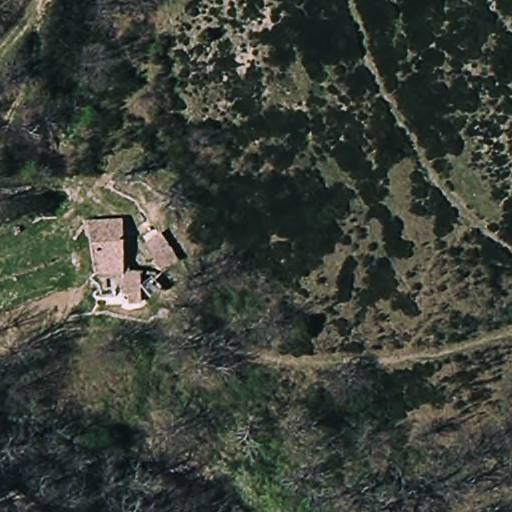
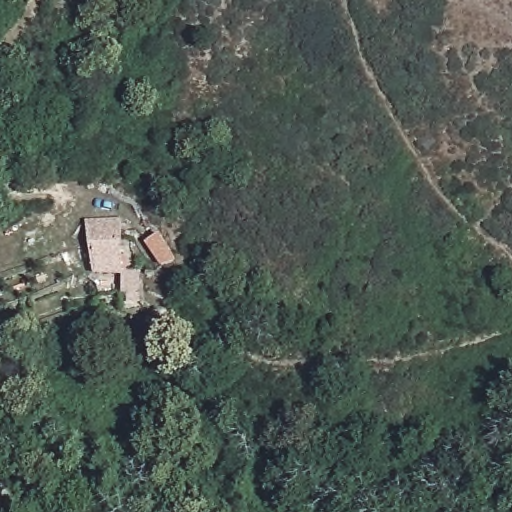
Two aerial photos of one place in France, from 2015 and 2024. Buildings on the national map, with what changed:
unchanged [(91,220),(124,217),(125,272),(97,274),(91,220)]
unchanged [(165,230),(182,257),(165,270),(148,242),(165,230)]

